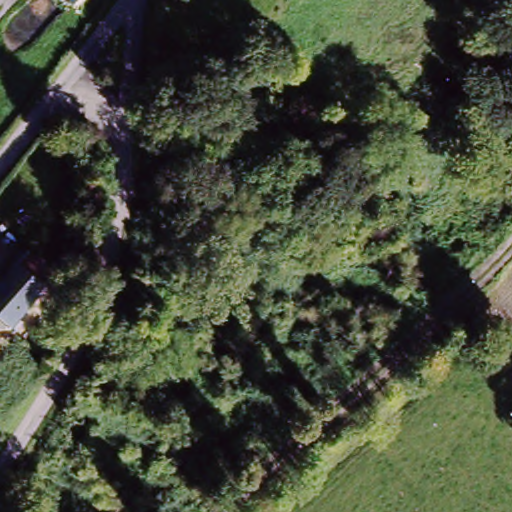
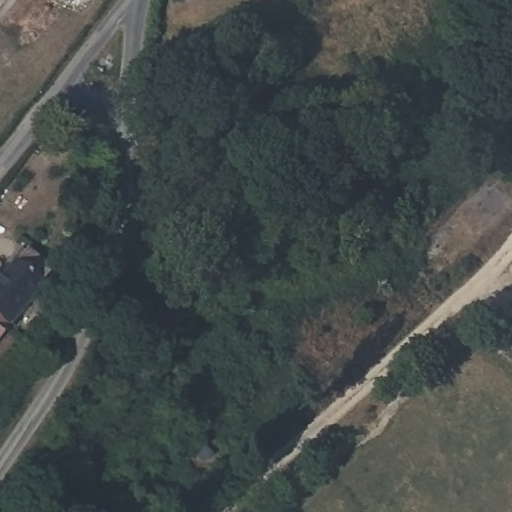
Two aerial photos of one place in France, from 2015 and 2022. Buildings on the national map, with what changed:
unchanged [(0,310),(0,288),(30,256),(52,276),(11,321),(0,310)]
unchanged [(11,321),(0,333),(0,310),(11,321)]

